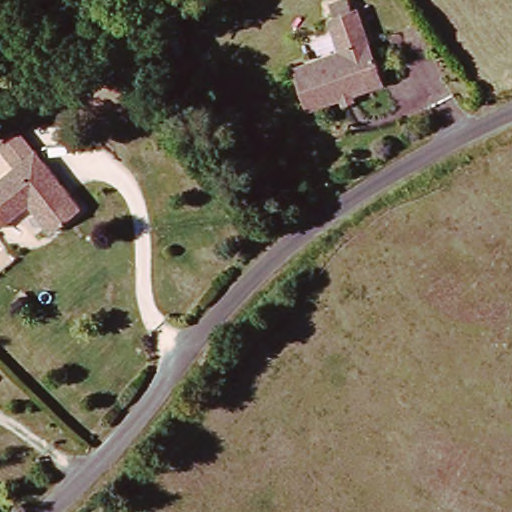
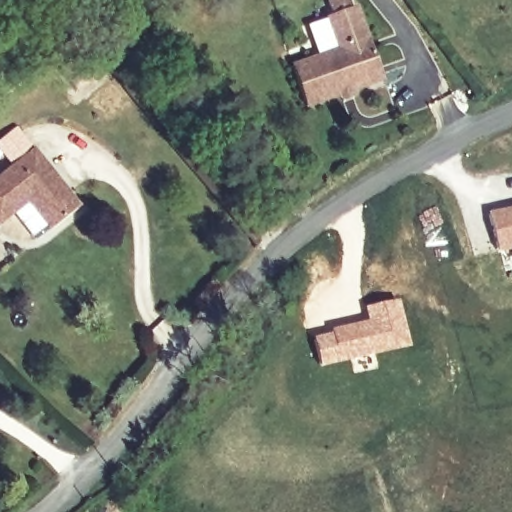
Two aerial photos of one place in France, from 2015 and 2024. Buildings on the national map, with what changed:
unchanged [(360,15),(382,85),(306,109),(293,67),(341,52),(333,26),(337,21),(334,10),(352,5),(356,17),(360,15)]
unchanged [(180,14),(194,80),(172,85),(158,19),(180,14)]
unchanged [(54,75),(76,61),(90,82),(68,97),(54,75)]
unchanged [(0,228),(0,179),(17,168),(4,149),(28,133),(41,152),(77,205),(84,217),(52,237),(37,209),(29,211),(0,228)]
new [(497,256),(487,215),(512,209),(512,252),(497,256)]
new [(396,302),(407,348),(320,369),(314,342),(331,337),(330,333),(370,323),(366,310),(396,302)]

